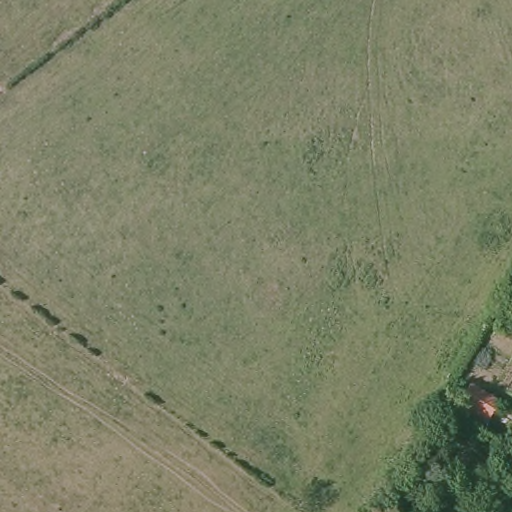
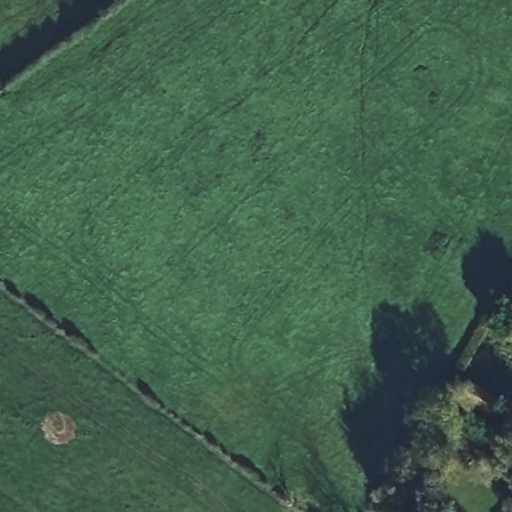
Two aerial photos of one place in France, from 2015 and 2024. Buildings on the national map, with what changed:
unchanged [(469,389),(494,406),(483,424),(458,407),(469,389)]

